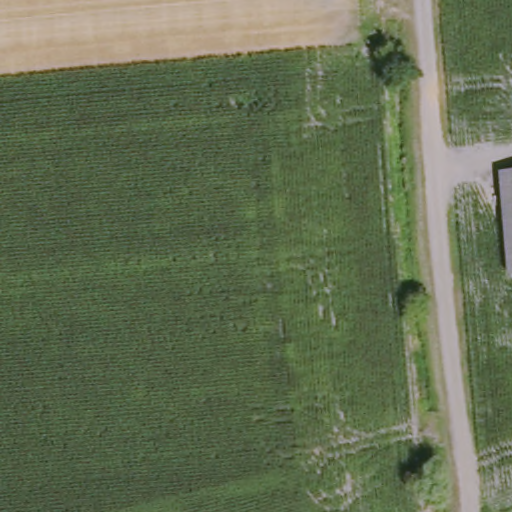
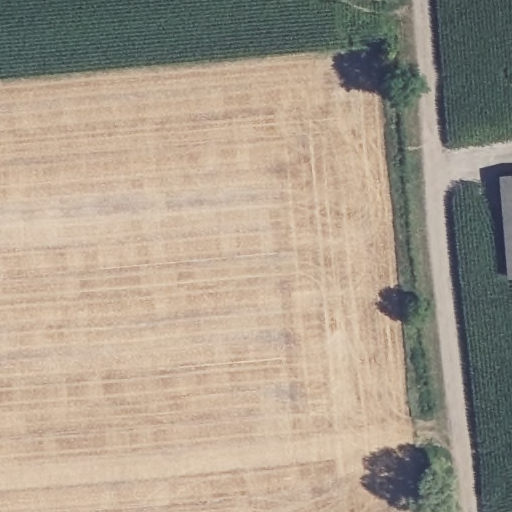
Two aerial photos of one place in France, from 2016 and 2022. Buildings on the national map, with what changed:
unchanged [(505,173),(512,172),(512,277),(510,277),(505,173)]

